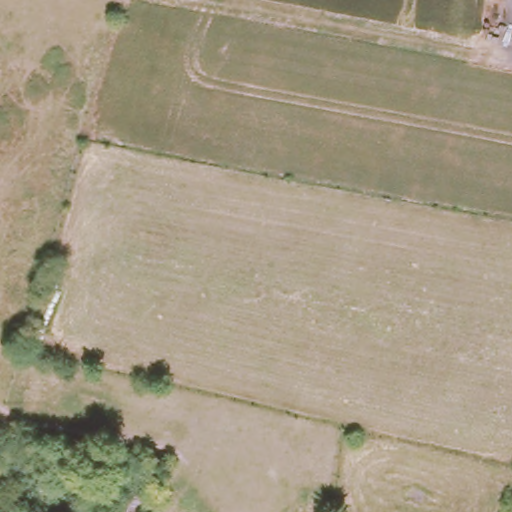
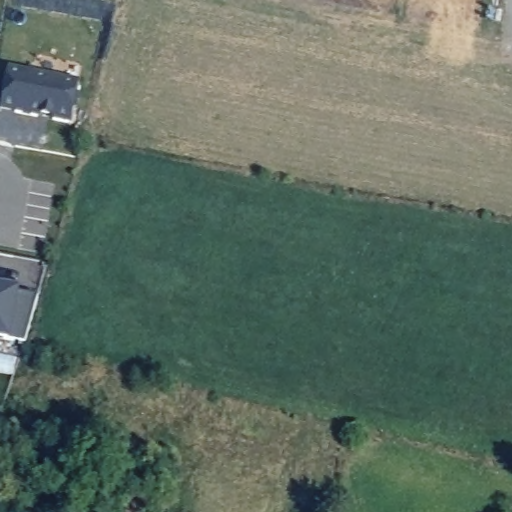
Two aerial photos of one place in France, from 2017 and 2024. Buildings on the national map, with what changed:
new [(71,125),(0,111),(9,66),(80,80),(71,125)]
new [(18,292),(38,296),(23,345),(9,339),(8,344),(0,342),(0,287),(18,291),(18,292)]

